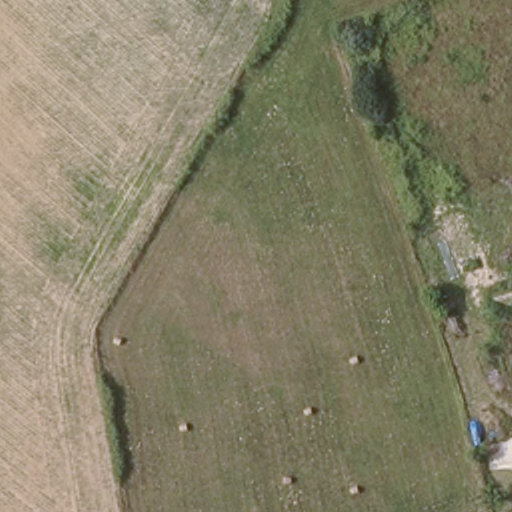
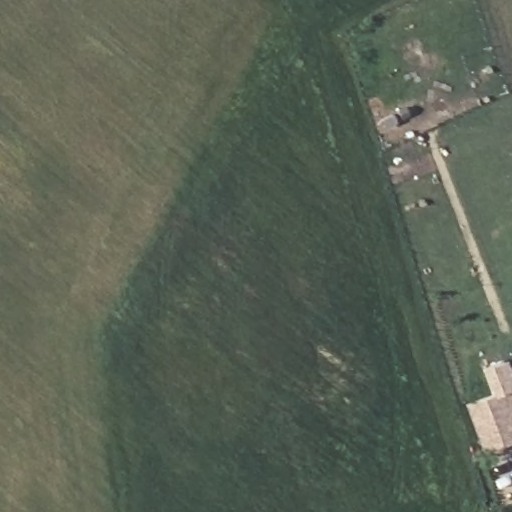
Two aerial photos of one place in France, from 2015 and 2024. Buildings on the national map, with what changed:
demolished [(501,357),(507,384),(490,388),(482,362),(501,357)]
new [(484,369),(507,361),(512,377),(512,443),(486,453),(467,406),(493,397),(484,369)]

